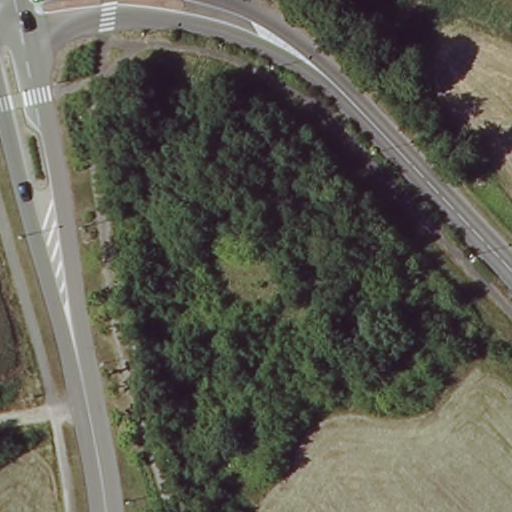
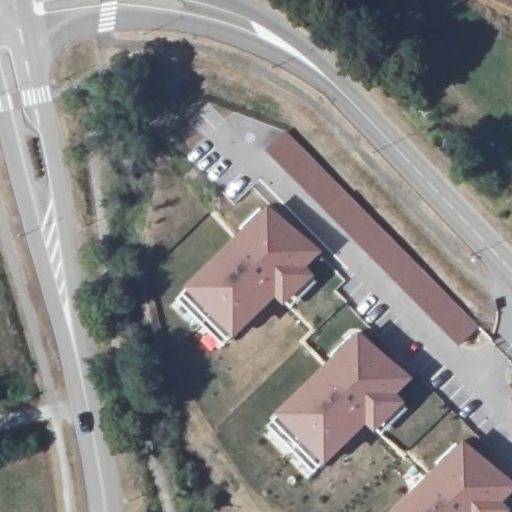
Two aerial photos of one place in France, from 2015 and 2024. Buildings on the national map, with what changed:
new [(481,322),(460,345),(265,146),(288,126),(481,322)]
new [(277,201),(330,250),(314,265),(323,274),(296,302),(288,294),(248,331),(245,327),(227,346),(183,299),(277,201)]
new [(370,330),(421,379),(410,391),(417,398),(387,431),(378,422),(339,460),(335,455),(326,466),(282,417),(370,330)]
new [(512,382),(512,387),(510,385),(512,382)]
new [(512,398),(512,399),(511,398),(512,398)]
new [(512,473),(512,512),(398,512),(472,436),(512,473)]

